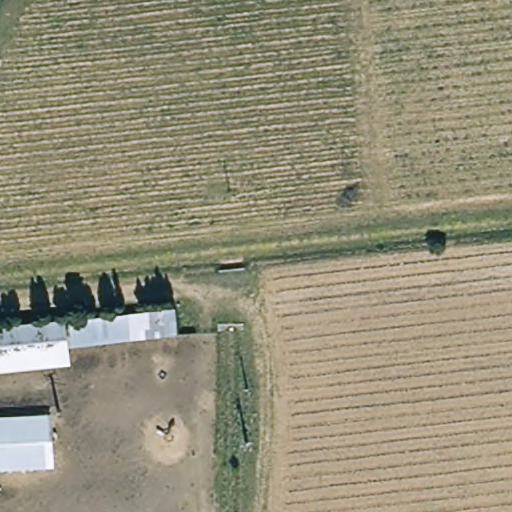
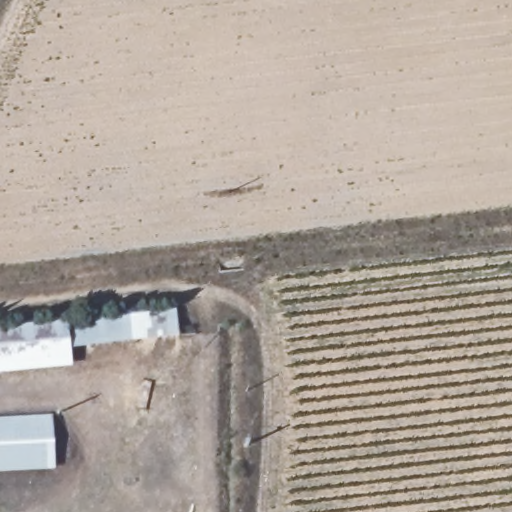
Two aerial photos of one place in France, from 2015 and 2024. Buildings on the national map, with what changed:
unchanged [(186,347),(77,356),(78,373),(0,380),(0,330),(184,315),(186,346),(186,347)]
unchanged [(286,410),(271,410),(271,397),(286,397),(286,410)]
unchanged [(0,470),(0,418),(51,416),(56,467),(0,470)]

